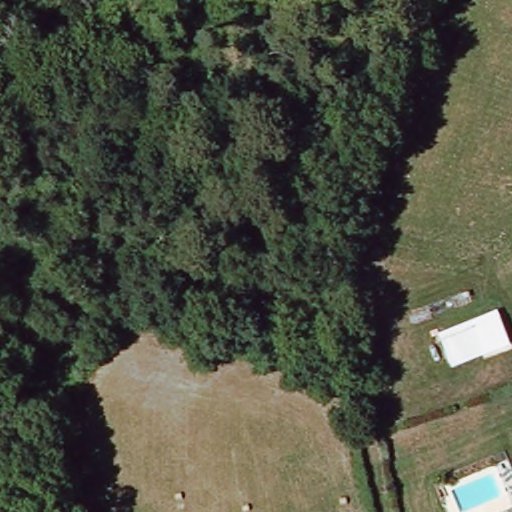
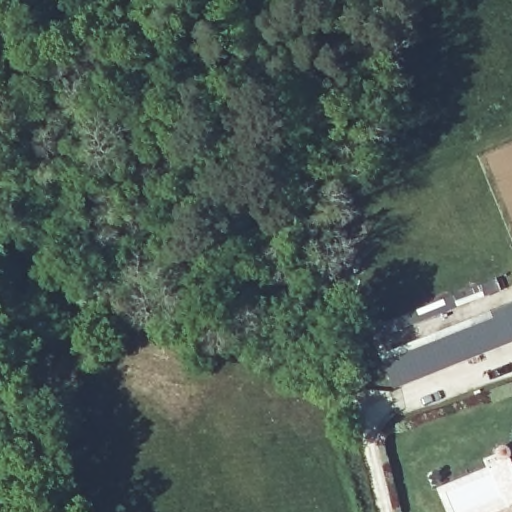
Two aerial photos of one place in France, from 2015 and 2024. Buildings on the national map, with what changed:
new [(512,302),(512,342),(392,390),(379,355),(512,302)]
demolished [(470,319),(483,353),(447,368),(435,332),(470,319)]
new [(512,512),(500,512),(512,507),(512,512)]

